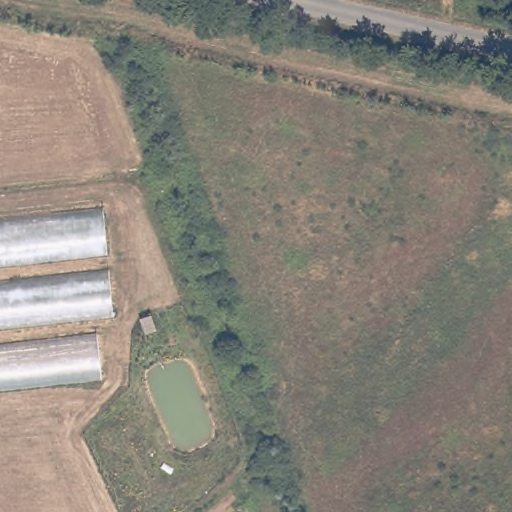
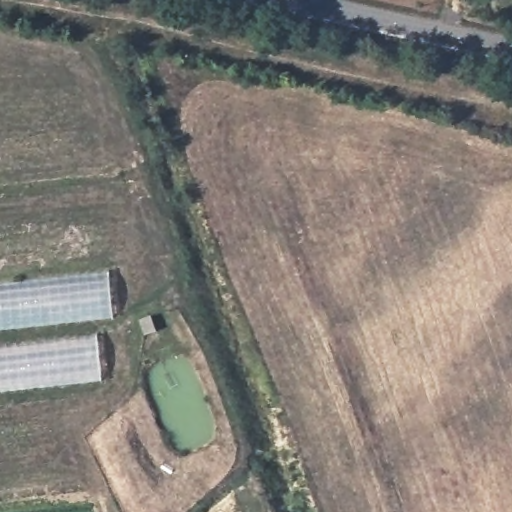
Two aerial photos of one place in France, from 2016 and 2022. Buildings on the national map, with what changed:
demolished [(108,255),(0,267),(0,221),(103,211),(108,255)]
unchanged [(115,318),(0,330),(0,283),(109,272),(115,318)]
unchanged [(135,321),(146,318),(151,333),(140,336),(135,321)]
unchanged [(100,383),(0,393),(0,344),(95,333),(100,383)]

